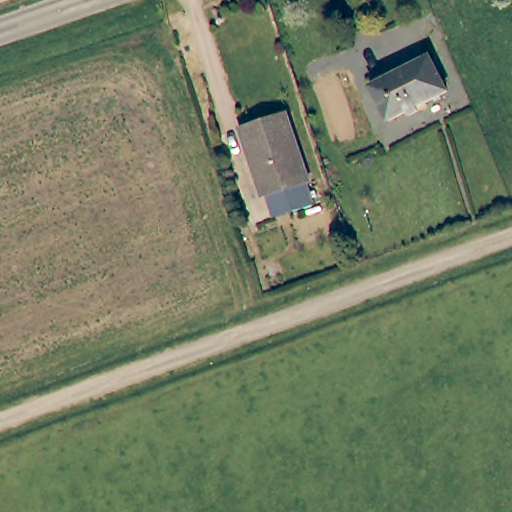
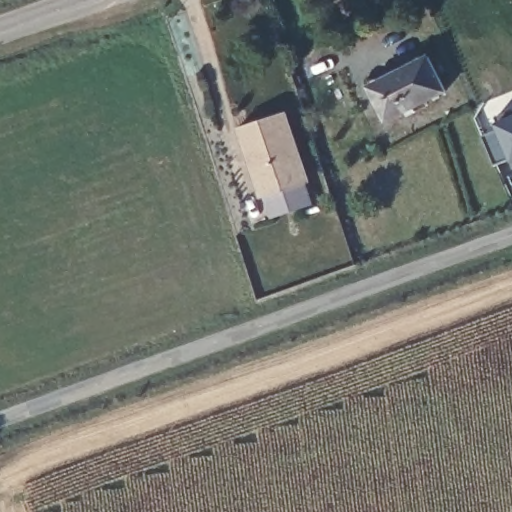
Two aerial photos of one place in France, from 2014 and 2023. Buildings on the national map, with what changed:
unchanged [(430,59),(447,94),(390,122),(372,88),(430,59)]
new [(485,137),(503,129),(501,123),(498,116),(512,111),(512,159),(496,165),(485,137)]
unchanged [(285,112),(311,183),(305,186),(312,209),(271,220),(266,203),(257,205),(234,128),(285,112)]

